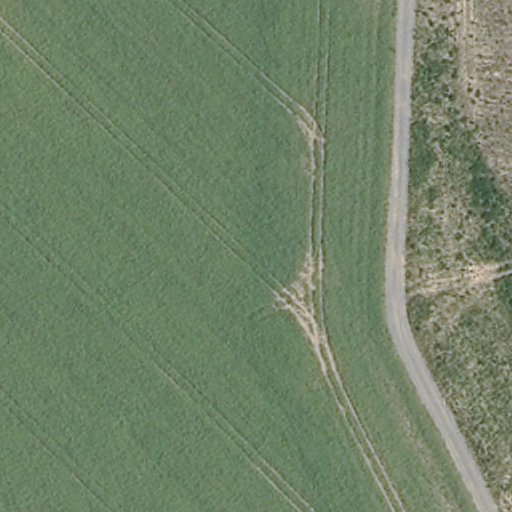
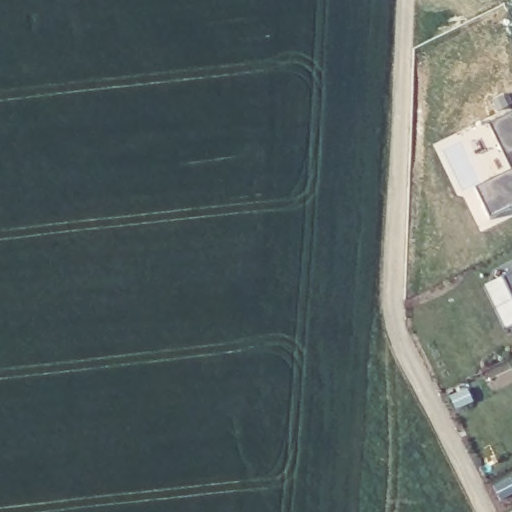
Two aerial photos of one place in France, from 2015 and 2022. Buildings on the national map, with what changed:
new [(512,115),(512,172),(490,126),(512,115)]
new [(490,220),(475,192),(512,174),(512,211),(490,220)]
new [(512,274),(512,300),(502,278),(512,274)]

